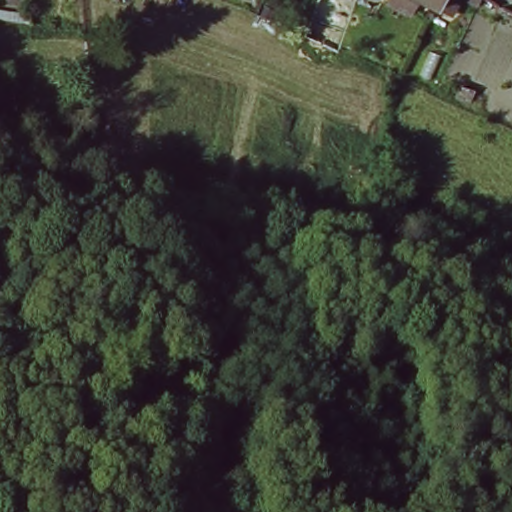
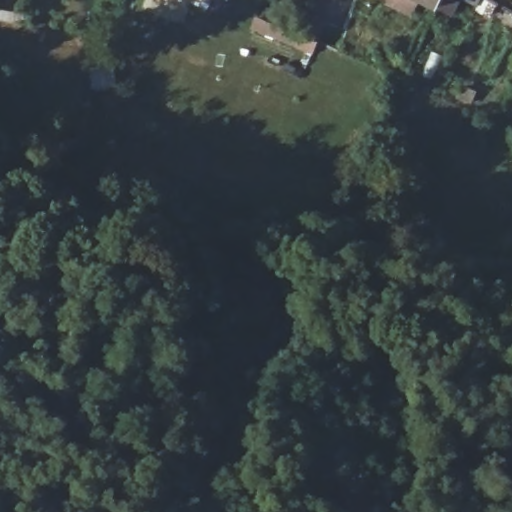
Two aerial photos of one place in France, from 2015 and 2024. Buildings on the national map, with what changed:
unchanged [(445,0),(440,11),(421,2),(414,16),(389,5),(391,0),(445,0)]
unchanged [(0,11),(30,16),(32,26),(0,20),(0,11)]

